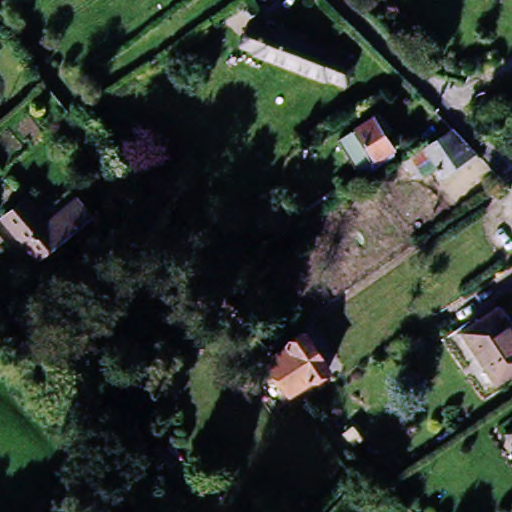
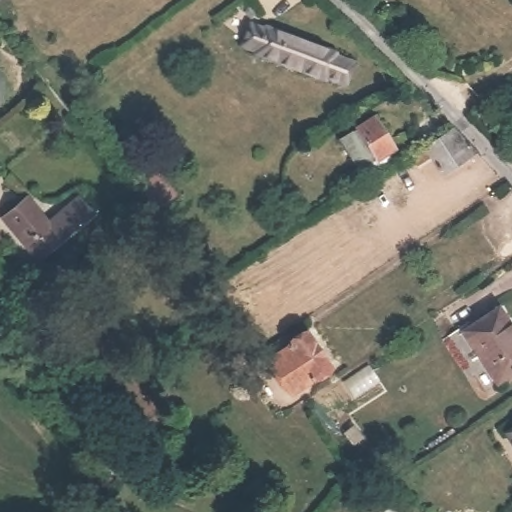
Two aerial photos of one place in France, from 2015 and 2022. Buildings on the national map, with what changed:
unchanged [(289,40),(339,58),(314,75),(227,45),(222,45),(231,20),(255,28),(289,40)]
unchanged [(359,65),(383,73),(375,96),(314,75),(339,58),(359,65)]
unchanged [(447,129),(472,154),(437,179),(413,152),(447,129)]
unchanged [(374,130),(395,157),(378,170),(366,155),(362,158),(355,150),(360,146),(358,143),(374,130)]
unchanged [(79,195),(95,211),(44,259),(6,219),(28,199),(49,223),(79,195)]
unchanged [(0,234),(7,241),(0,249),(0,234)]
unchanged [(512,339),(512,370),(493,382),(462,334),(495,313),(512,339)]
unchanged [(302,337),(324,370),(310,380),(316,389),(300,400),(270,358),(302,337)]
unchanged [(512,432),(512,446),(506,436),(512,432)]

